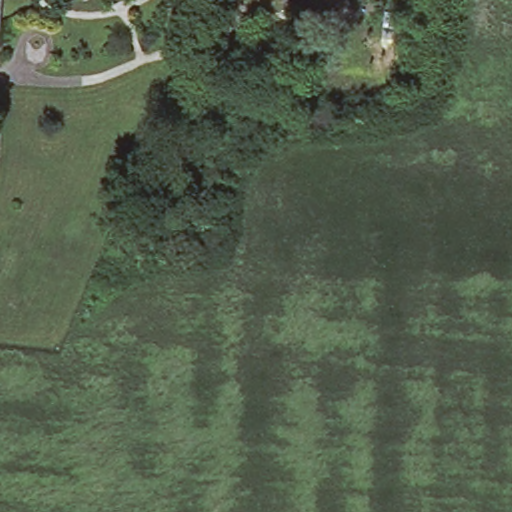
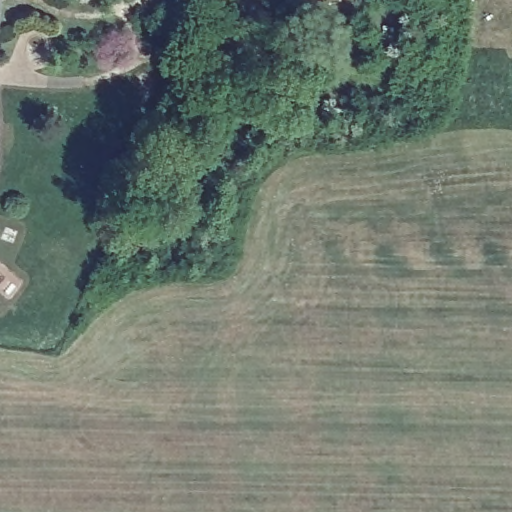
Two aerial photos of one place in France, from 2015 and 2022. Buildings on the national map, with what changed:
unchanged [(269,70),(225,60),(230,33),(273,41),(269,70)]

